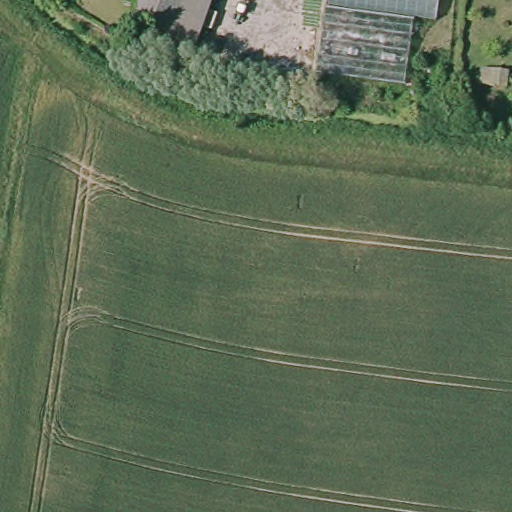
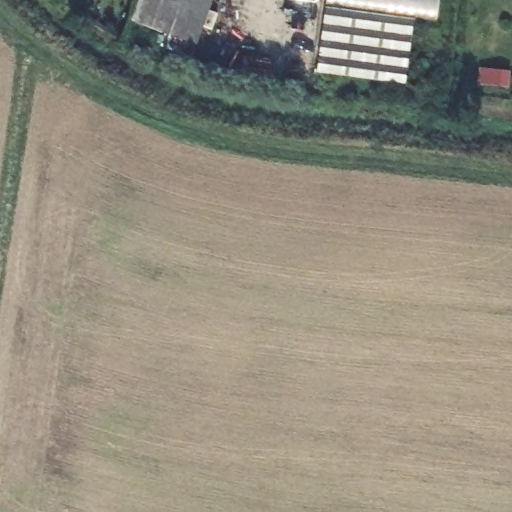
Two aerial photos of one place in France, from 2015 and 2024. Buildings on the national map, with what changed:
unchanged [(142,32),(153,0),(197,0),(181,46),(142,32)]
unchanged [(439,0),(436,22),(414,19),(405,85),(315,73),(325,0),(439,0)]

